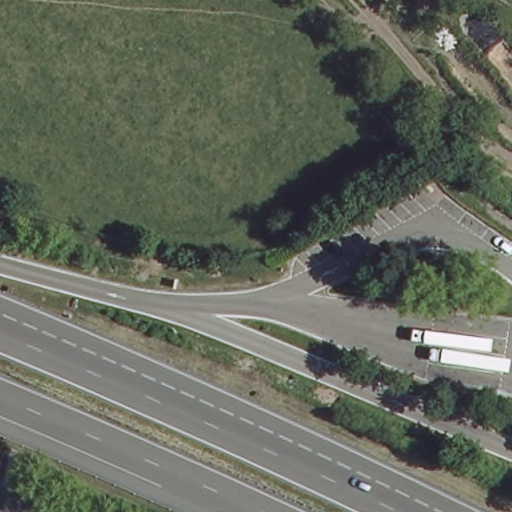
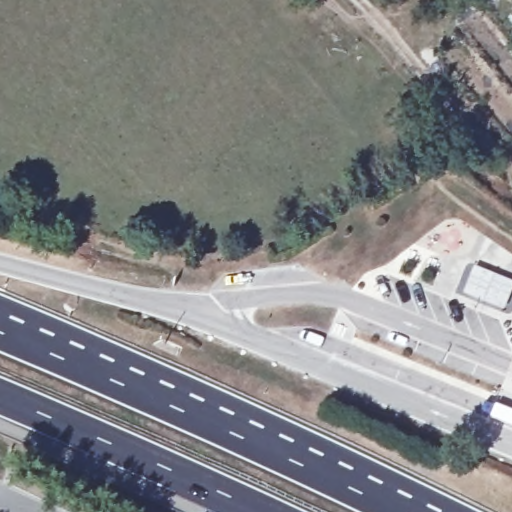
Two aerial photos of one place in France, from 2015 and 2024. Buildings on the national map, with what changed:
new [(474,265),(512,281),(512,293),(505,311),(463,295),(474,265)]

